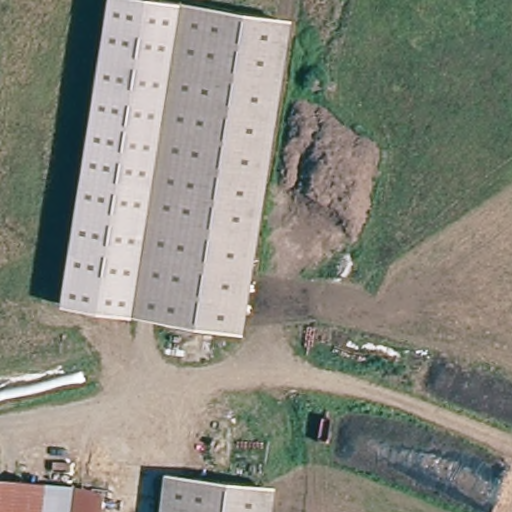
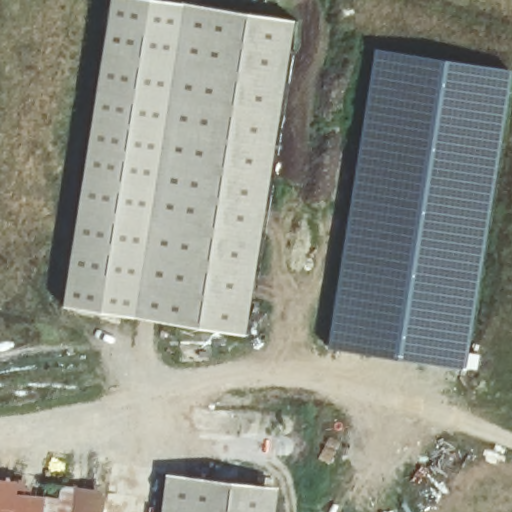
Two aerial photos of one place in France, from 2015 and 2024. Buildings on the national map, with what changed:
unchanged [(108,0),(170,0),(180,1),(151,218),(131,215),(122,283),(141,285),(138,315),(60,305),(108,0)]
unchanged [(138,315),(141,285),(122,283),(131,215),(151,218),(180,1),(275,14),(233,329),(138,315)]
new [(363,99),(373,46),(512,69),(512,72),(468,352),(479,354),(476,369),(325,346),(363,99)]
unchanged [(0,476),(101,488),(99,512),(0,512),(0,476)]
unchanged [(272,487),(269,512),(172,512),(177,476),(272,487)]

